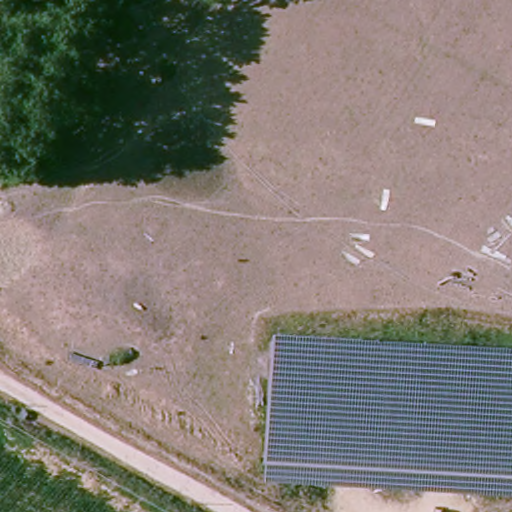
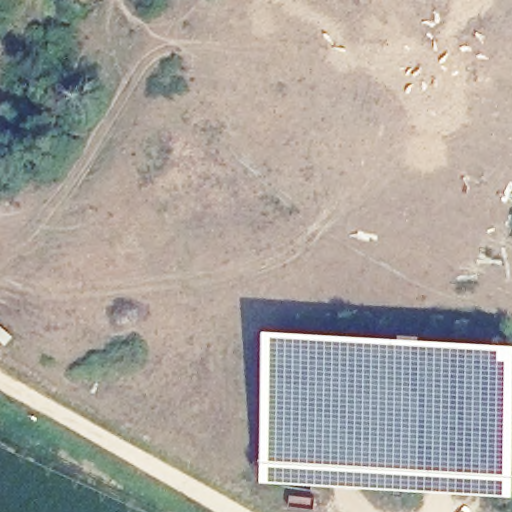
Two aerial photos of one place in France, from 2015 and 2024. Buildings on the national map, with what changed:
unchanged [(268,352),(512,362),(512,483),(265,473),(268,352)]

